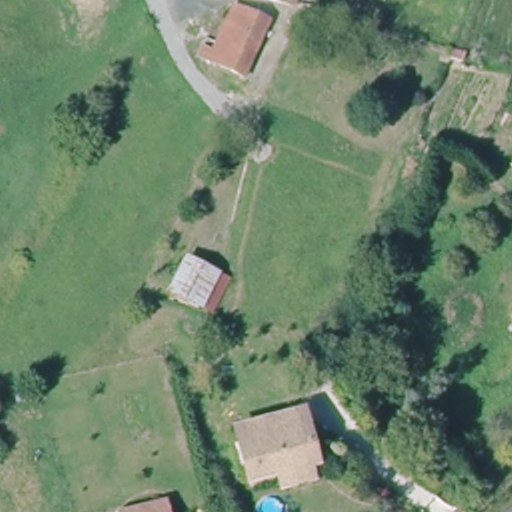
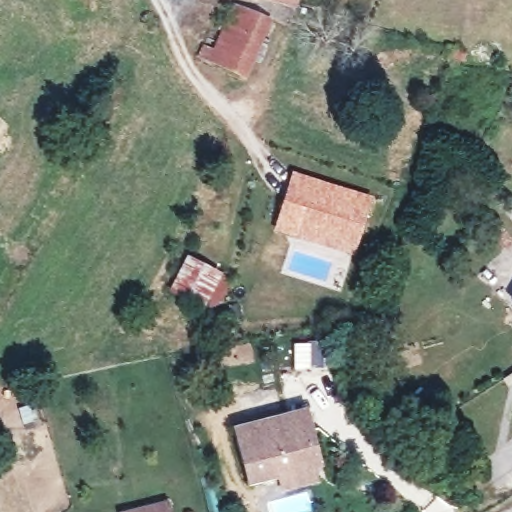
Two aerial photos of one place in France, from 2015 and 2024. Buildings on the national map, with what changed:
unchanged [(294,6),(271,0),(296,0),(295,2),(294,6)]
unchanged [(271,19),(246,78),(201,55),(206,44),(217,49),(237,4),(271,19)]
unchanged [(448,59),(452,49),(467,53),(464,62),(448,59)]
new [(320,243),(277,229),(293,176),(367,200),(356,237),(351,253),(320,243)]
unchanged [(227,274),(209,308),(174,291),(192,256),(227,274)]
unchanged [(278,487),(277,477),(247,483),(236,428),(290,417),(311,412),(314,432),(307,433),(316,469),(307,470),(310,481),(278,487)]
unchanged [(123,509),(167,499),(170,512),(124,512),(123,509)]

